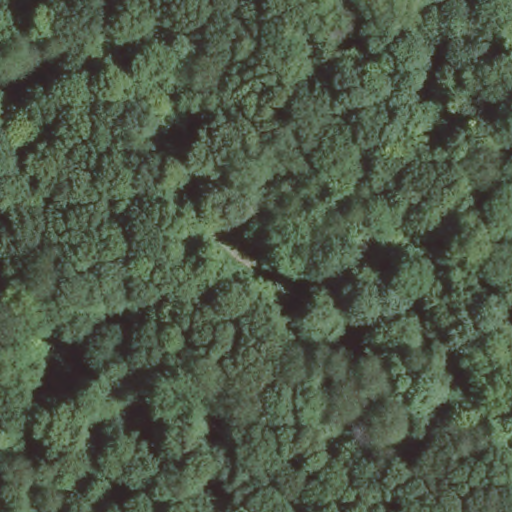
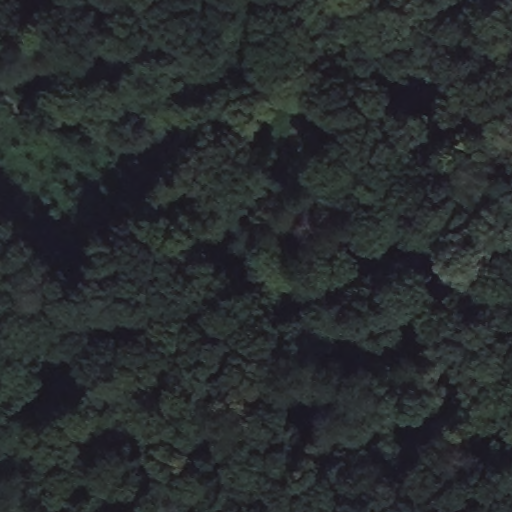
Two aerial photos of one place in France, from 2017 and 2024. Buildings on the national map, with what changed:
unchanged [(10,268),(22,280),(14,290),(0,278),(10,268)]

